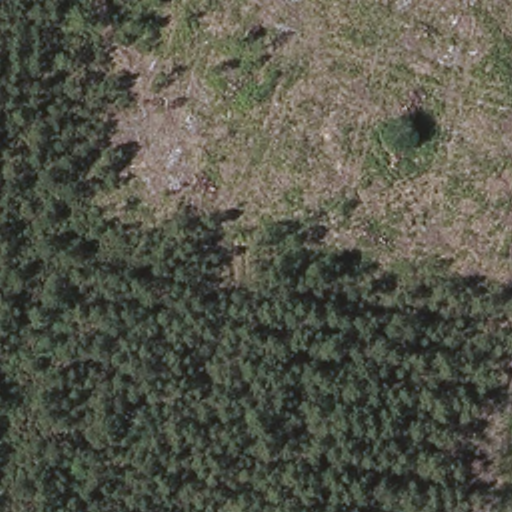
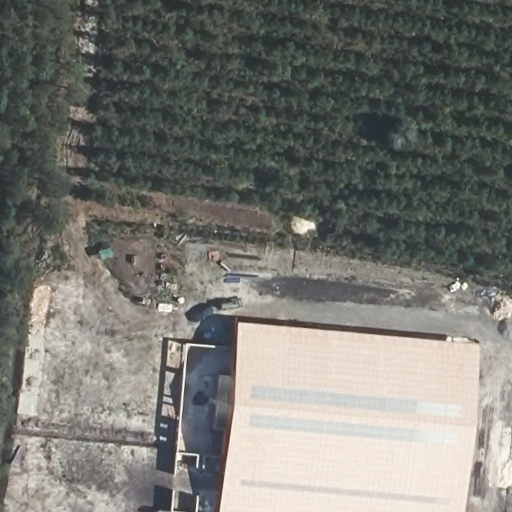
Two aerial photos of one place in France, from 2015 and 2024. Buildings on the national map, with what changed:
new [(169,512),(183,342),(231,347),(234,321),(476,343),(460,512),(169,512)]
demolished [(211,442),(156,433),(165,378),(216,387),(211,442)]

